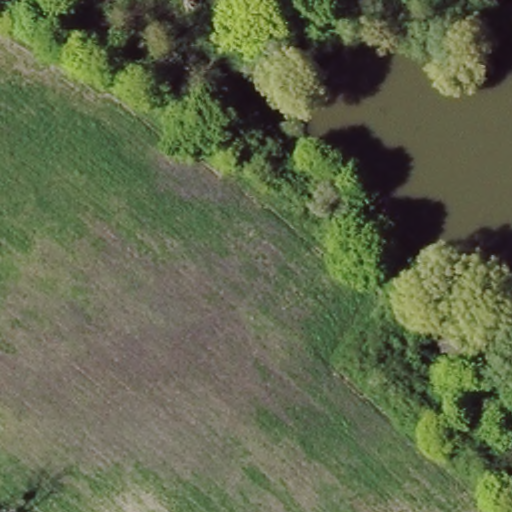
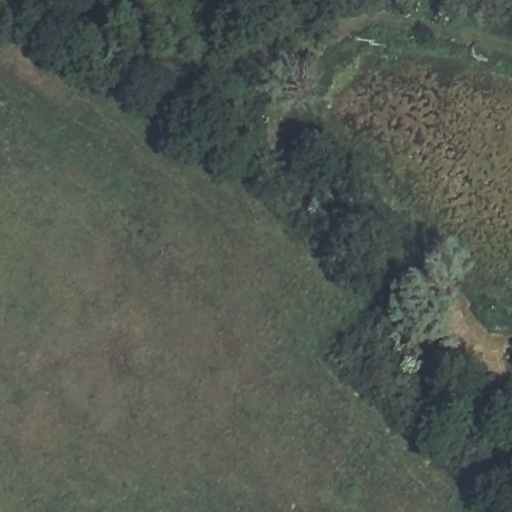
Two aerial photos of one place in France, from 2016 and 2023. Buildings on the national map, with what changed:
unchanged [(469,354),(444,360),(441,345),(465,340),(469,354)]

